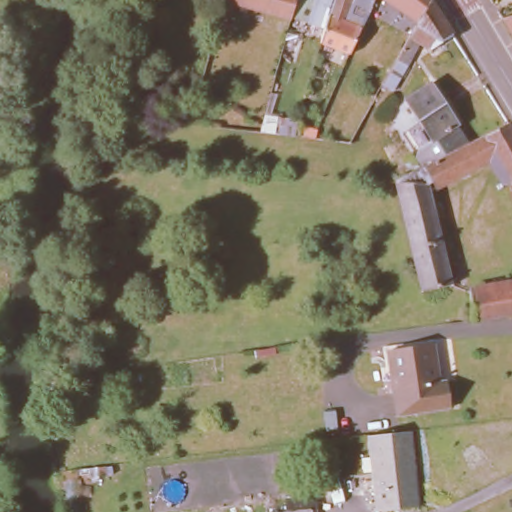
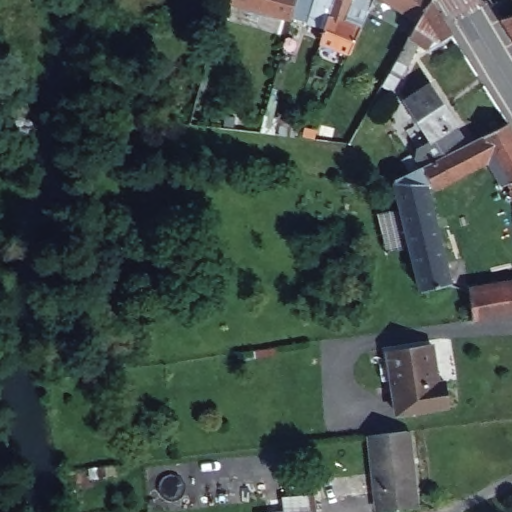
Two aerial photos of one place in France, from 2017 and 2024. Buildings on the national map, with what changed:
unchanged [(369,1),(357,27),(345,52),(315,40),(319,28),(301,22),(284,16),(232,0),(365,0),(369,1)]
unchanged [(447,32),(425,47),(415,40),(387,86),(377,80),(406,34),(418,14),(398,0),(427,0),(447,32)]
unchanged [(507,19),(512,17),(512,26),(507,19)]
unchanged [(412,155),(410,152),(430,142),(425,136),(400,94),(427,78),(452,120),(442,126),(454,144),(465,138),(477,131),(502,119),(512,138),(512,207),(504,180),(487,149),(474,155),(476,160),(430,182),(427,177),(420,181),(445,280),(415,286),(389,176),(405,168),(402,161),(412,155)]
unchanged [(231,130),(220,129),(221,120),(231,121),(231,130)]
unchanged [(512,279),(512,309),(469,315),(463,286),(512,279)]
unchanged [(429,345),(435,383),(442,381),(447,407),(395,416),(385,352),(429,345)]
unchanged [(408,512),(384,512),(382,495),(379,495),(372,440),(407,435),(412,435),(422,510),(408,512)]
unchanged [(315,500),(316,512),(293,512),(292,502),(315,500)]

